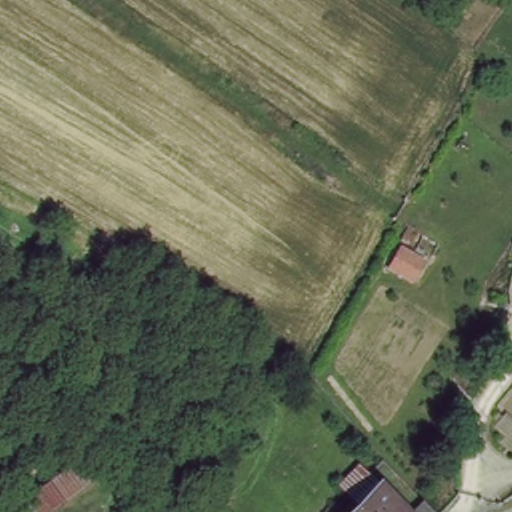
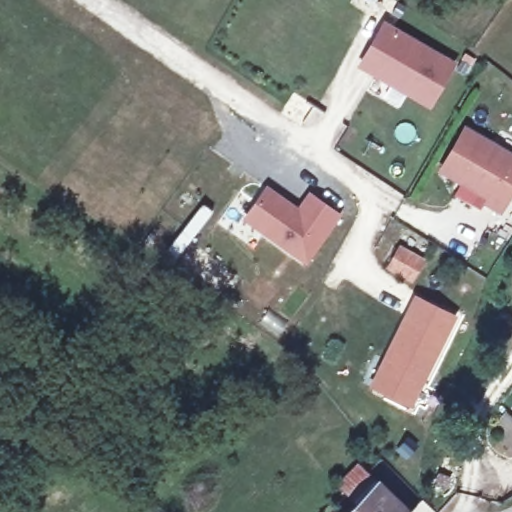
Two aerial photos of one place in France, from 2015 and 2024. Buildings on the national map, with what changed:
new [(455,69),(431,108),(362,67),(385,28),(455,69)]
new [(512,194),(501,212),(487,203),(490,198),(441,170),(466,128),(512,155),(512,194)]
new [(305,265),(245,222),(267,191),(293,210),(291,213),(297,217),(310,198),(339,219),(305,265)]
unchanged [(413,284),(385,270),(398,243),(426,259),(413,284)]
new [(413,293),(460,317),(415,410),(367,386),(413,293)]
new [(505,434),(495,426),(506,413),(512,417),(512,453),(498,442),(505,434)]
unchanged [(87,476),(43,512),(31,512),(22,498),(77,455),(87,476)]
unchanged [(414,512),(349,512),(358,503),(339,483),(360,461),(379,481),(414,512)]

